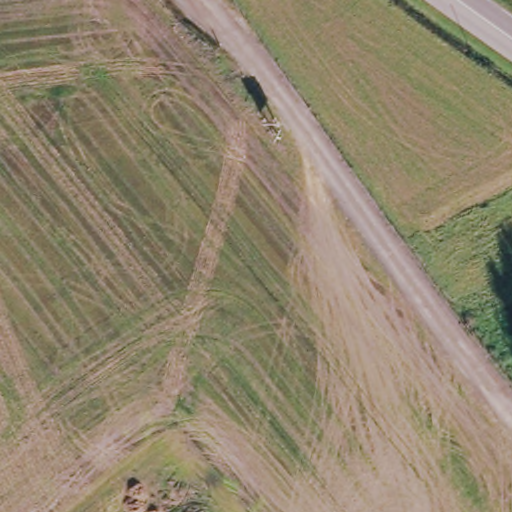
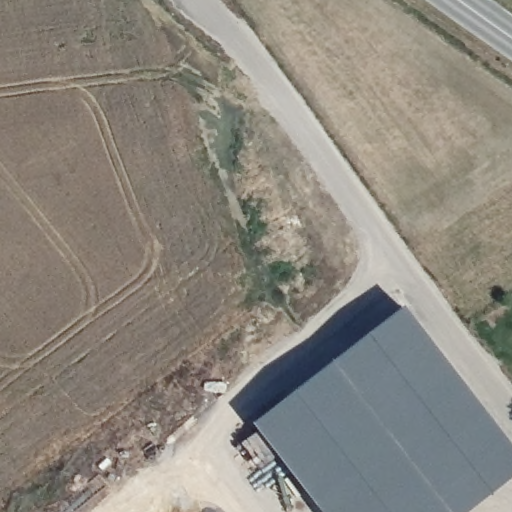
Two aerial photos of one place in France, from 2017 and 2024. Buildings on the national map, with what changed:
new [(252,425),(402,309),(512,452),(512,472),(461,512),(319,512),(252,425)]

